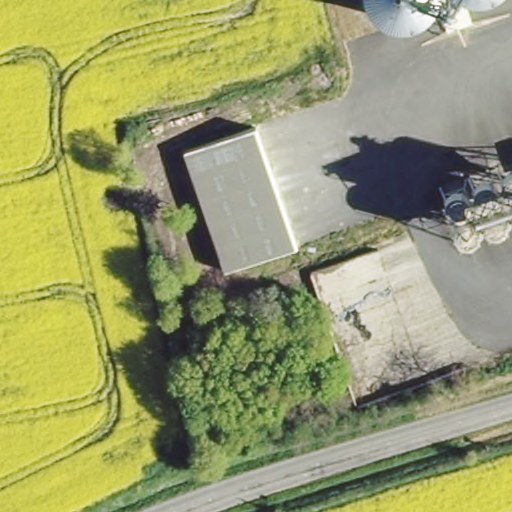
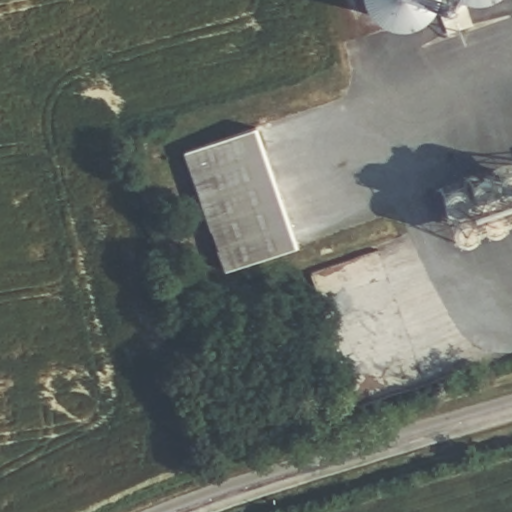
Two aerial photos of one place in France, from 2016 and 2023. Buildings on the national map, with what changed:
unchanged [(436,6),(432,12),(425,16),(419,18),(411,21),(402,21),(392,20),(384,17),(377,13),(372,5),(369,0),(440,0),(439,2),(436,6)]
unchanged [(243,131),(292,245),(227,273),(178,159),(243,131)]
unchanged [(512,226),(465,244),(443,194),(512,168),(512,226)]

